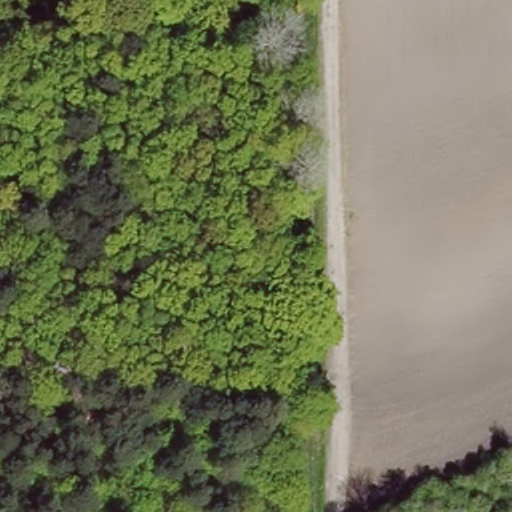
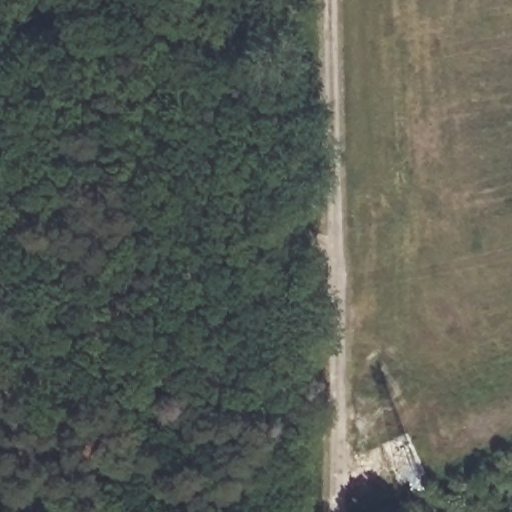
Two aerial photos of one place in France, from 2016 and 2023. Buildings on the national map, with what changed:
[]

